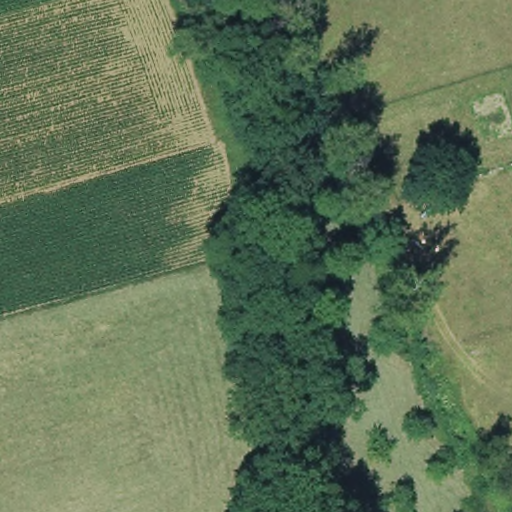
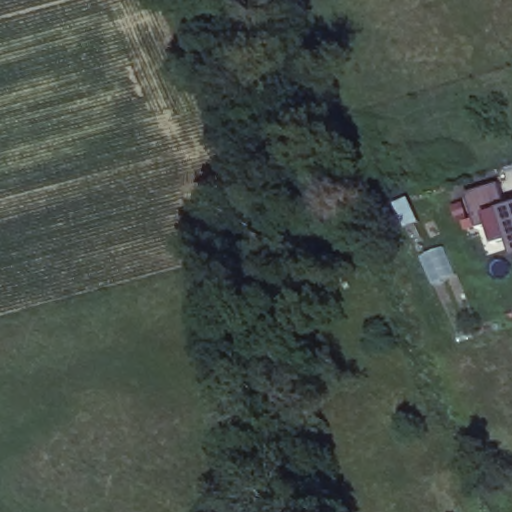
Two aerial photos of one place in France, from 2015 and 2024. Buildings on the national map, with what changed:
new [(491,229),(482,232),(471,197),(504,186),(511,210),(512,210),(512,242),(496,247),(491,229)]

